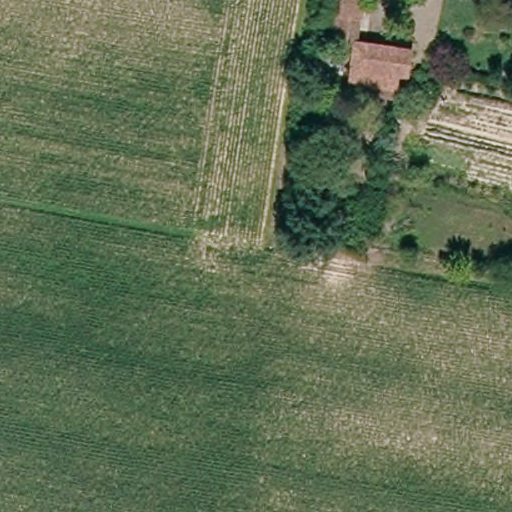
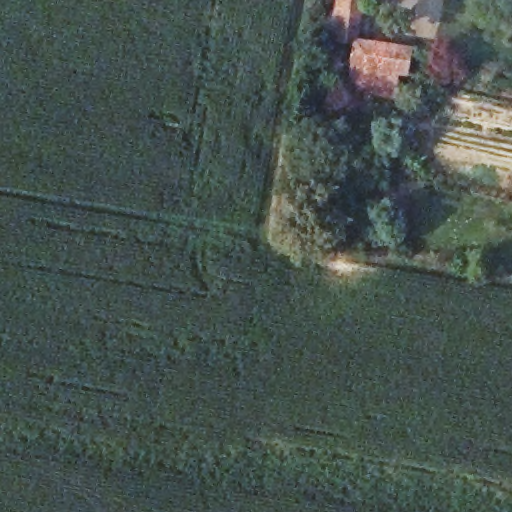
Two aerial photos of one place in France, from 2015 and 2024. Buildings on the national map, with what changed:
unchanged [(363,0),(362,11),(334,8),(335,0),(363,0)]
unchanged [(354,77),(355,64),(358,40),(413,47),(409,71),(403,70),(400,84),(354,77)]

